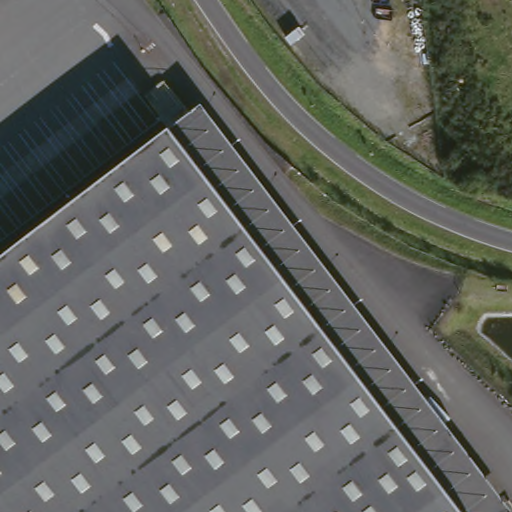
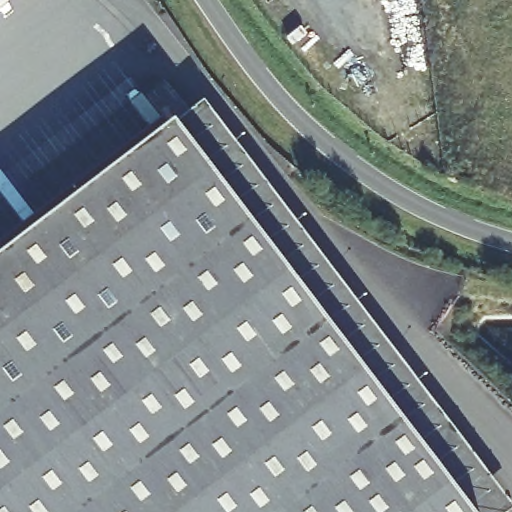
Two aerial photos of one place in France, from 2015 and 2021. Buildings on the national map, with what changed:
unchanged [(0,266),(185,124),(480,512),(0,512),(0,266)]

